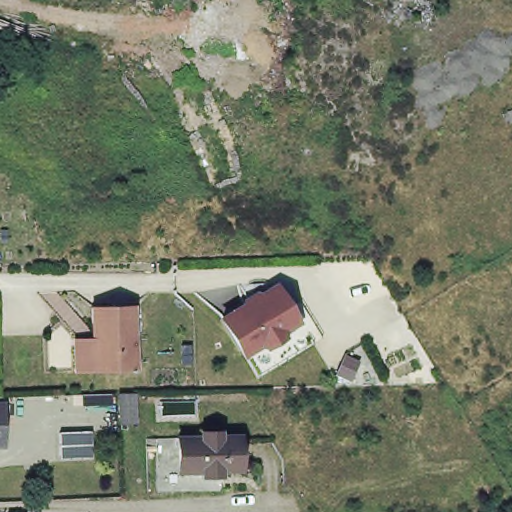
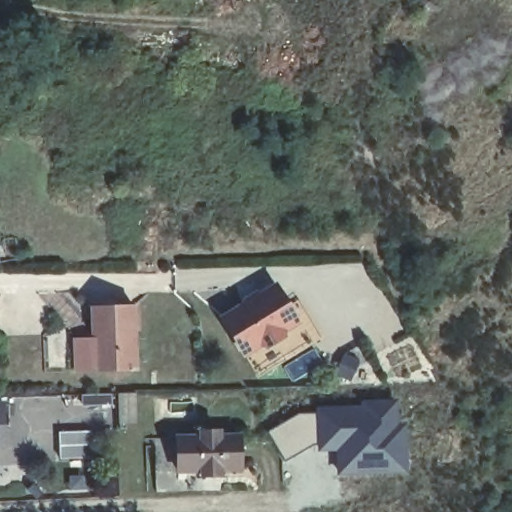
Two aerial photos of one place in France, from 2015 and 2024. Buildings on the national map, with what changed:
unchanged [(279,288),(297,318),(282,326),(280,340),(269,346),(260,340),(243,348),(225,318),(279,288)]
unchanged [(91,371),(89,308),(133,307),(135,370),(91,371)]
unchanged [(1,400),(2,440),(0,440),(0,400),(1,400)]
new [(297,414),(315,414),(315,408),(359,406),(359,400),(399,400),(400,424),(407,425),(408,475),(335,477),(337,453),(316,452),(316,444),(284,461),(268,433),(297,414)]
unchanged [(171,423),(194,423),(218,422),(218,417),(234,418),(234,422),(255,422),(256,443),(257,474),(237,475),(237,476),(219,477),(172,480),(172,445),(171,423)]
unchanged [(90,432),(90,439),(101,438),(100,460),(30,458),(29,442),(40,442),(39,431),(90,432)]

